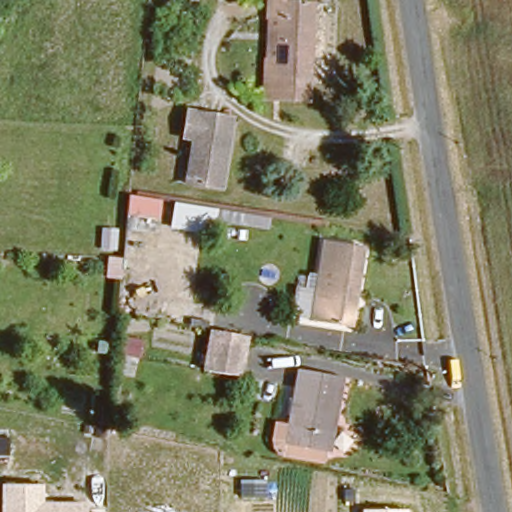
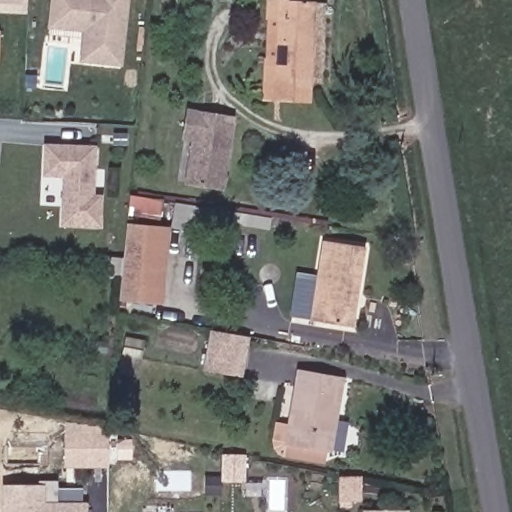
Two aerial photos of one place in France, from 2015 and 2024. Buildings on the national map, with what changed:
new [(0,0),(22,0),(22,12),(0,12),(0,0)]
new [(83,31),(69,35),(69,43),(48,41),(47,27),(52,0),(127,0),(120,66),(79,62),(83,31)]
unchanged [(285,14),(267,14),(267,0),(313,0),(309,99),(267,97),(265,79),(267,57),(283,57),(285,14)]
unchanged [(228,117),(217,183),(184,179),(189,135),(182,134),(185,111),(228,117)]
new [(43,175),(43,142),(94,147),(92,197),(101,197),(100,227),(59,227),(63,176),(43,175)]
new [(162,198),(159,220),(128,216),(130,195),(162,198)]
new [(162,303),(121,300),(130,222),(172,228),(162,303)]
unchanged [(306,317),(320,238),(361,247),(348,324),(306,317)]
unchanged [(237,372),(205,366),(209,328),(243,335),(237,372)]
unchanged [(329,446),(324,446),(322,456),(274,448),(269,440),(272,424),(287,426),(294,367),(339,373),(329,446)]
new [(64,468),(64,422),(108,427),(108,467),(64,468)]
unchanged [(44,485),(44,502),(88,502),(87,512),(2,512),(1,484),(44,485)]
unchanged [(409,512),(362,512),(362,509),(409,510),(409,512)]

